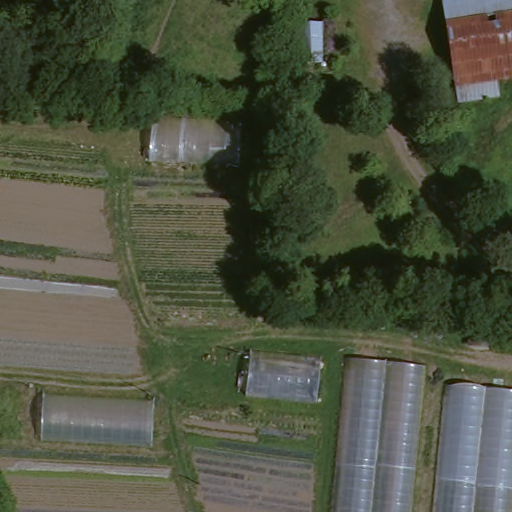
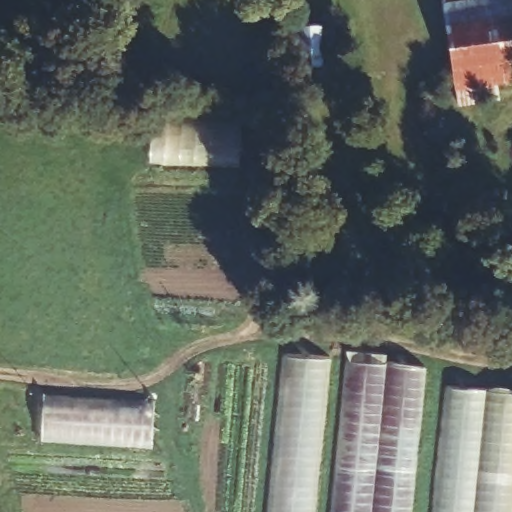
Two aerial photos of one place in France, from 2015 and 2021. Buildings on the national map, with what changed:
unchanged [(443,0),(512,0),(512,81),(459,89),(443,0)]
unchanged [(294,74),(292,7),(318,6),(322,74),(294,74)]
unchanged [(419,80),(414,64),(446,53),(451,71),(419,80)]
unchanged [(412,129),(406,104),(424,100),(429,125),(412,129)]
unchanged [(240,169),(148,163),(151,115),(242,121),(240,169)]
new [(287,355),(323,360),(307,512),(271,512),(287,355)]
unchanged [(426,366),(412,512),(331,512),(345,357),(426,366)]
unchanged [(446,384),(512,391),(512,512),(434,512),(446,384)]
unchanged [(155,401),(152,450),(39,442),(43,395),(155,401)]

